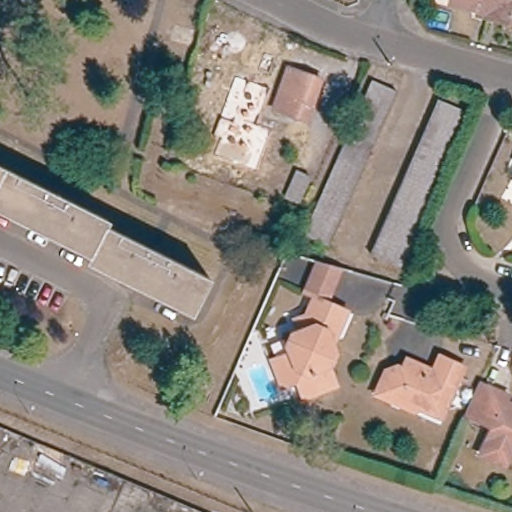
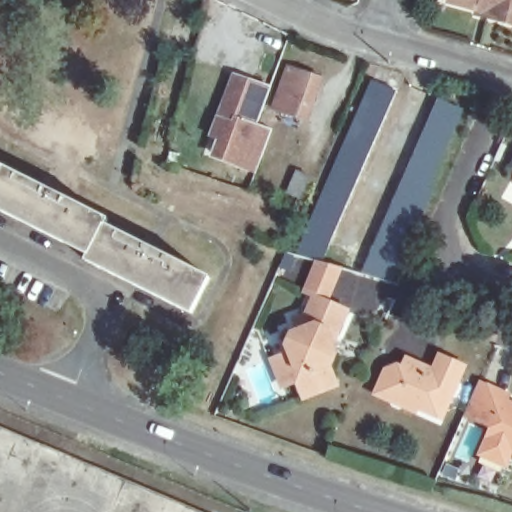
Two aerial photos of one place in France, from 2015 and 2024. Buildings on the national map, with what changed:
unchanged [(479,7),(454,0),(512,0),(512,24),(495,19),(486,17),(477,14),(479,7)]
unchanged [(321,78),(308,119),(277,106),(291,66),(321,78)]
new [(207,151),(238,73),(271,85),(257,123),(273,128),(256,174),(207,151)]
unchanged [(398,90),(354,190),(329,245),(306,234),(363,105),(374,80),(398,90)]
unchanged [(464,114),(423,208),(396,269),(371,258),(420,148),(440,104),(464,114)]
unchanged [(109,217),(106,225),(211,277),(194,312),(103,268),(88,260),(92,253),(0,207),(0,164),(109,217)]
unchanged [(337,342),(330,344),(337,362),(333,371),(341,392),(308,405),(303,392),(293,389),(283,392),(273,367),(291,360),(287,349),(290,341),(298,338),(294,326),(307,321),(314,304),(305,300),(318,264),(341,271),(326,309),(347,318),(337,342)]
unchanged [(439,375),(446,359),(471,370),(463,387),(447,422),(424,410),(421,415),(382,397),(390,381),(394,373),(403,370),(410,373),(413,363),(439,375)]
unchanged [(487,446),(494,427),(467,416),(481,384),(509,396),(505,405),(512,407),(512,449),(511,449),(504,465),(482,455),(487,446)]

